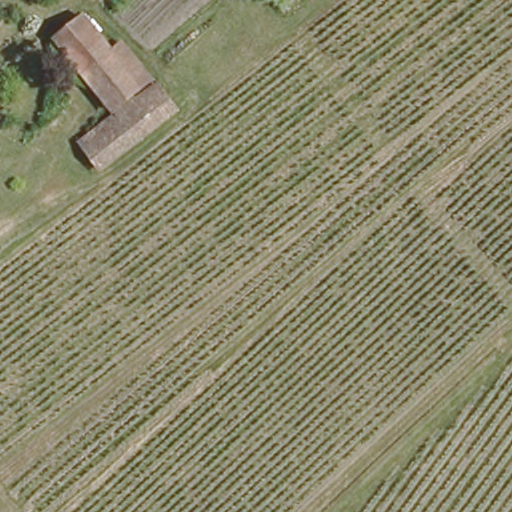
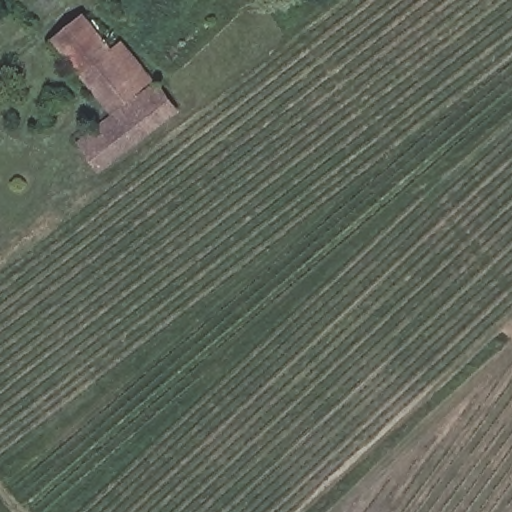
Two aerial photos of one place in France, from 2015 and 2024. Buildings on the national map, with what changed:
unchanged [(46,40),(76,15),(106,50),(76,75),(46,40)]
unchanged [(106,50),(114,44),(146,81),(109,113),(76,75),(106,50)]
unchanged [(149,86),(169,113),(93,174),(71,147),(149,86)]

